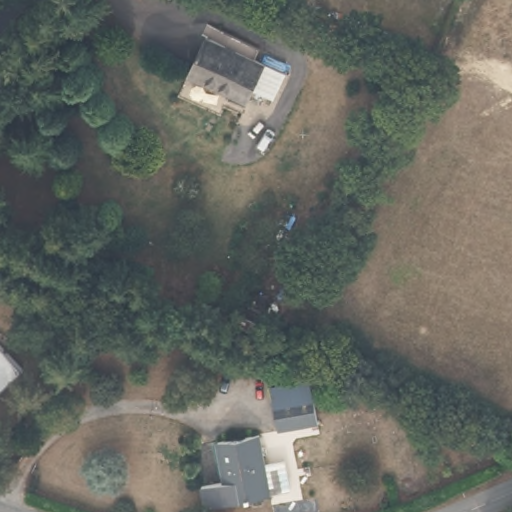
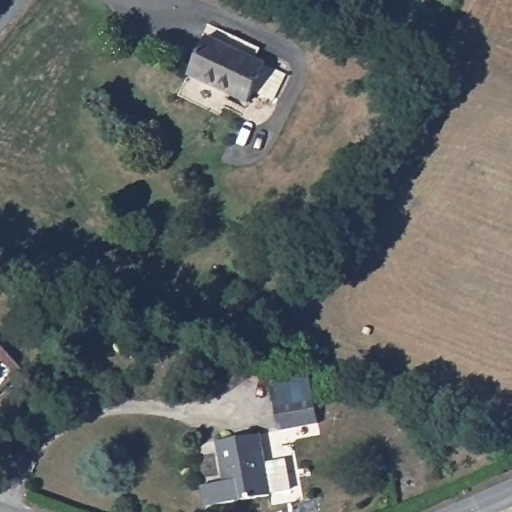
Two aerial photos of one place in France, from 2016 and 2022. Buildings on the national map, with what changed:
unchanged [(242,51),(283,72),(273,95),(256,89),(249,103),(231,94),(221,114),(178,91),(208,35),(226,44),(231,33),(247,40),(242,51)]
unchanged [(93,303),(87,320),(67,313),(73,296),(93,303)]
unchanged [(10,365),(11,385),(8,397),(0,405),(0,350),(10,365)]
unchanged [(280,436),(272,406),(269,389),(305,379),(309,395),(317,426),(280,436)]
unchanged [(283,458),(288,487),(265,490),(266,495),(225,501),(215,442),(257,435),(262,461),(283,458)]

